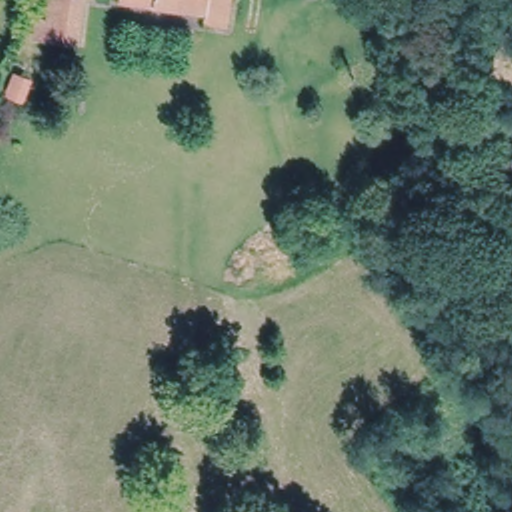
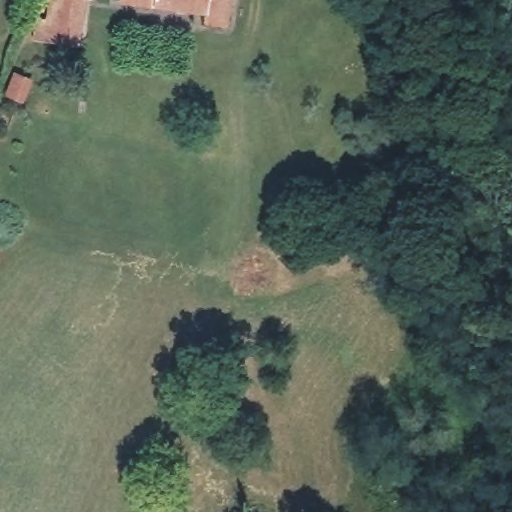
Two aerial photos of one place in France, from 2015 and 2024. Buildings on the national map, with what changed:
unchanged [(36,36),(37,18),(49,19),(50,0),(81,0),(77,39),(36,36)]
unchanged [(206,13),(151,5),(150,10),(121,6),(121,0),(231,0),(227,28),(205,24),(206,13)]

